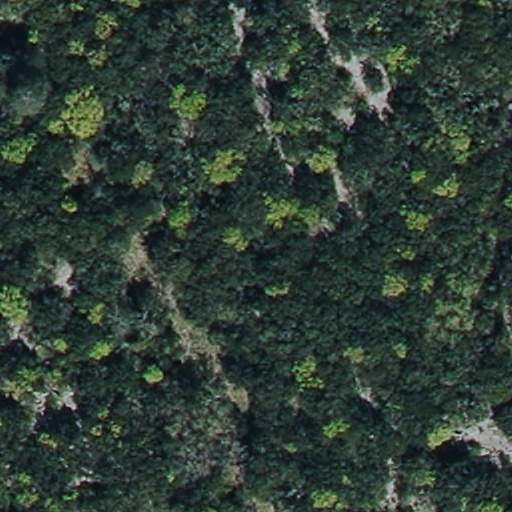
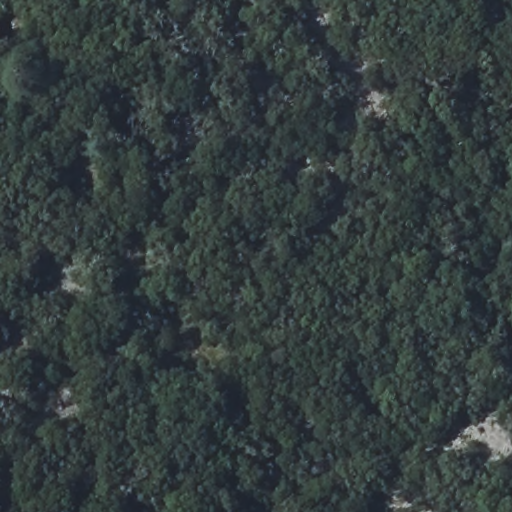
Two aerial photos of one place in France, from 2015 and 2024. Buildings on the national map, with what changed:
unchanged [(0,40),(0,37),(1,40),(0,40)]

